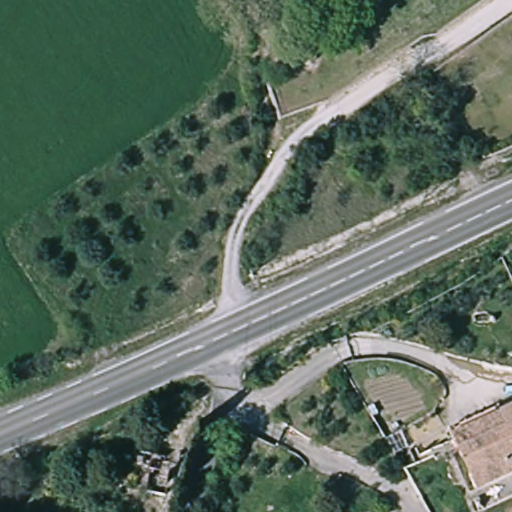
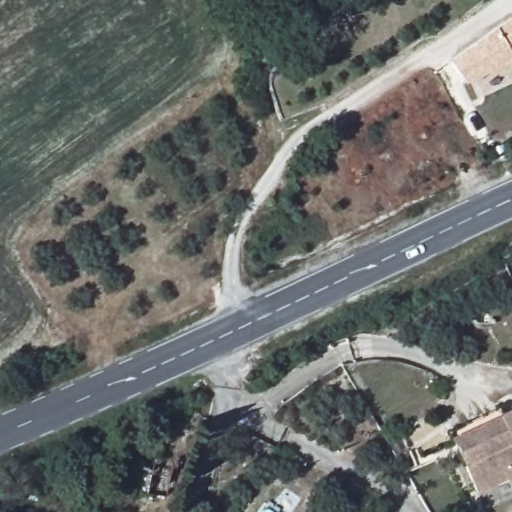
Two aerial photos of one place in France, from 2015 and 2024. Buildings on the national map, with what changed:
new [(467,82),(449,58),(512,15),(512,64),(467,82)]
unchanged [(477,491),(457,447),(451,433),(499,412),(512,409),(512,475),(477,491)]
unchanged [(147,509),(153,489),(135,485),(139,472),(174,481),(166,512),(158,512),(147,509)]

